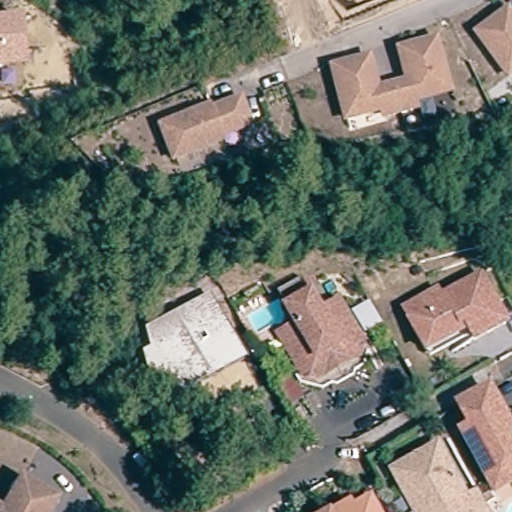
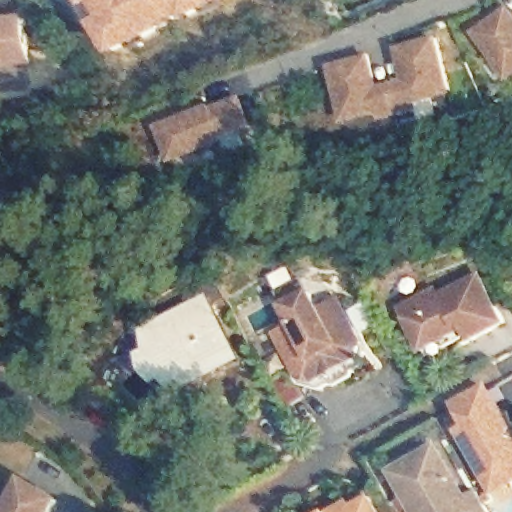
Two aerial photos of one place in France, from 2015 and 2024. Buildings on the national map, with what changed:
new [(83,0),(221,0),(181,19),(179,16),(160,25),(163,31),(110,55),(83,0)]
unchanged [(502,0),(512,14),(512,60),(503,67),(471,23),(502,0)]
unchanged [(28,64),(0,66),(0,22),(24,20),(28,64)]
unchanged [(363,48),(372,81),(390,76),(402,72),(393,40),(430,30),(444,82),(408,92),(410,98),(397,102),(378,107),(376,101),(340,110),(326,58),(363,48)]
unchanged [(217,130),(167,149),(155,118),(205,98),(206,101),(235,91),(244,116),(228,122),(216,127),(217,130)]
unchanged [(415,338),(398,306),(432,288),(431,285),(470,264),(495,311),(463,328),(457,316),(450,319),(415,338)]
unchanged [(374,348),(333,371),(318,367),(314,360),(288,314),(306,304),(296,286),(320,273),(330,290),(349,280),(374,326),(378,333),(374,348)]
unchanged [(141,318),(201,284),(224,324),(236,345),(175,381),(167,366),(150,374),(136,347),(151,338),(141,318)]
unchanged [(474,387),(484,382),(512,432),(512,470),(490,482),(458,425),(467,420),(455,398),(474,387)]
unchanged [(388,463),(432,439),(461,491),(474,484),(490,512),(416,512),(408,499),(388,463)]
unchanged [(61,501),(54,512),(7,512),(24,481),(61,501)]
unchanged [(348,499),(365,487),(380,512),(306,512),(340,492),(348,499)]
unchanged [(0,512),(0,510),(3,512),(0,512)]

